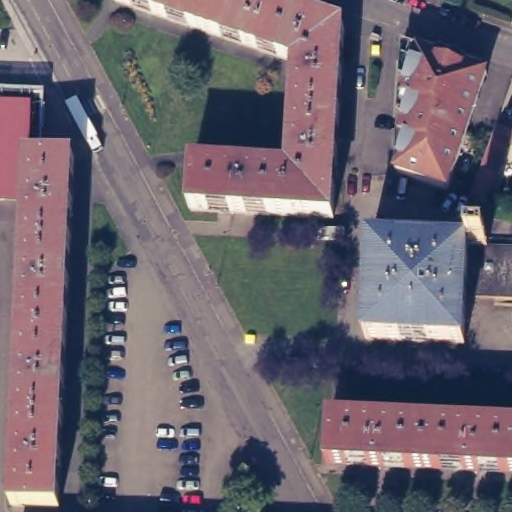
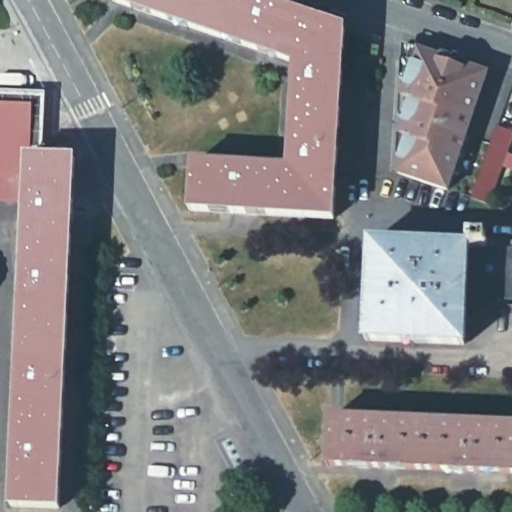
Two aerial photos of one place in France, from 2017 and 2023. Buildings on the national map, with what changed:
unchanged [(340,116),(334,215),(192,207),(194,160),(290,166),(297,60),(123,0),(267,0),(345,27),(340,116)]
unchanged [(483,75),(463,135),(443,191),(392,174),(406,132),(398,130),(407,102),(398,100),(409,66),(398,62),(398,47),(437,60),(451,65),(477,73),(483,75)]
unchanged [(31,192),(0,191),(0,95),(38,97),(36,149),(31,192)]
unchanged [(482,175),(487,160),(503,117),(512,121),(512,141),(498,181),(492,196),(476,190),(482,175)]
unchanged [(31,192),(36,149),(80,152),(65,499),(18,497),(31,192)]
unchanged [(477,234),(512,236),(512,294),(472,292),(474,244),(476,244),(477,234)]
unchanged [(472,292),(470,341),(373,336),(377,239),(474,244),(472,292)]
unchanged [(331,415),(512,423),(512,470),(329,462),(331,415)]

